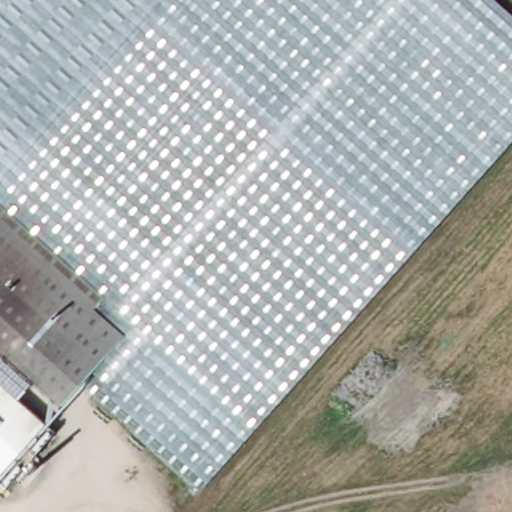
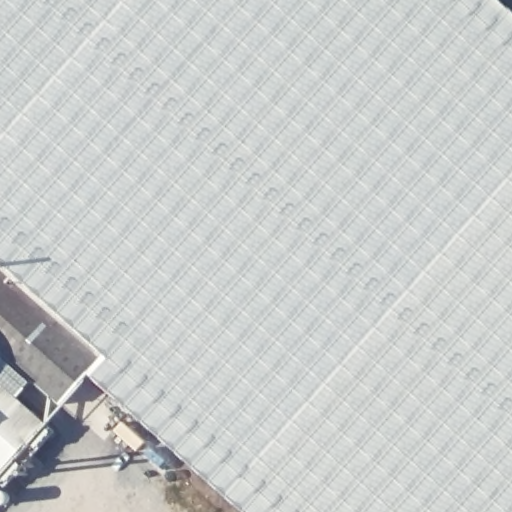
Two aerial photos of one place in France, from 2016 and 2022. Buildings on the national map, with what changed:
unchanged [(207,478),(199,487),(91,391),(73,411),(0,346),(0,0),(496,0),(512,14),(512,140),(207,478)]
new [(512,140),(512,512),(244,512),(207,478),(512,140)]
unchanged [(0,487),(0,486),(0,384),(51,430),(0,487)]

